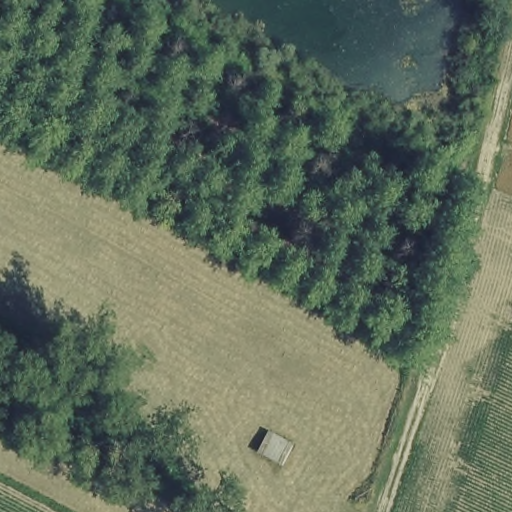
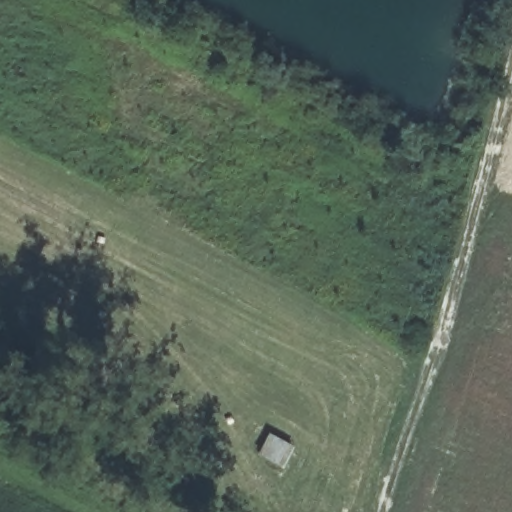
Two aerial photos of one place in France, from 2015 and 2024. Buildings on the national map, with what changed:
unchanged [(290,447),(275,472),(252,462),(268,436),(290,447)]

